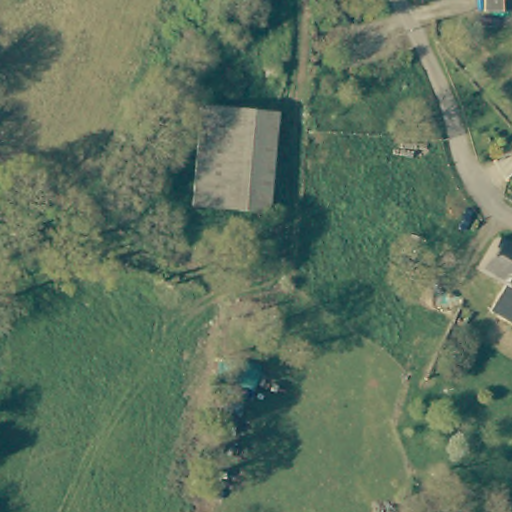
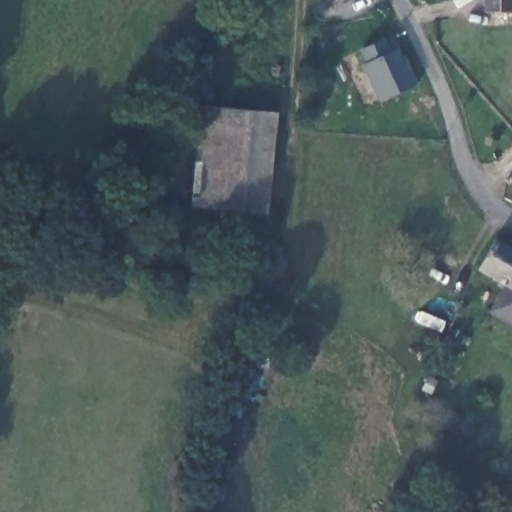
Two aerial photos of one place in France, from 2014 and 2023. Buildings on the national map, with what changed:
unchanged [(489,5),(489,0),(512,0),(512,9),(489,5)]
new [(369,63),(362,48),(385,38),(391,52),(396,49),(401,56),(405,55),(416,85),(380,101),(362,65),(369,63)]
unchanged [(265,212),(192,207),(197,105),(270,111),(265,212)]
unchanged [(476,271),(471,268),(488,233),(497,237),(512,246),(512,293),(476,271)]
unchanged [(491,313),(505,289),(512,293),(512,325),(491,313)]

